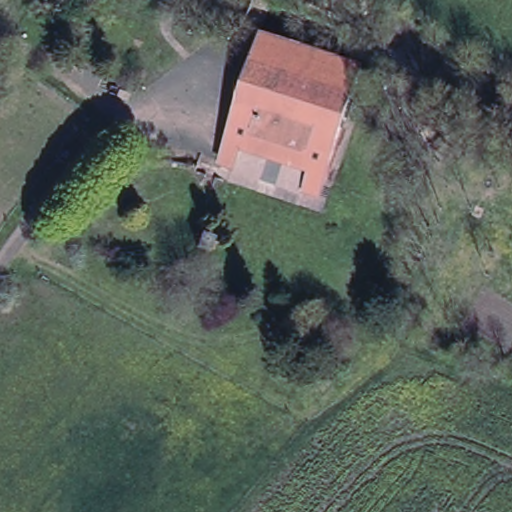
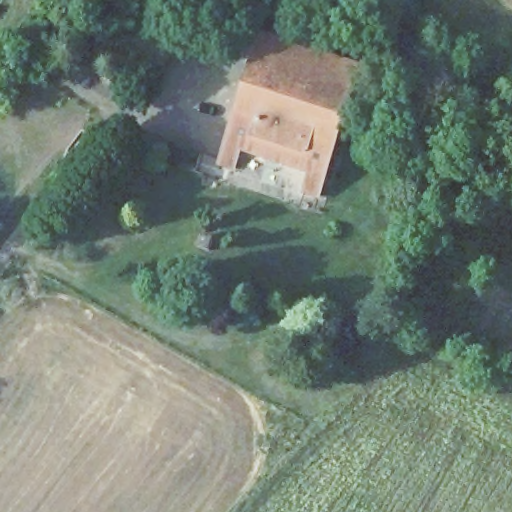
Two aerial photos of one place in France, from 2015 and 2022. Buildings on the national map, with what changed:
unchanged [(362,67),(353,91),(318,195),(220,163),(262,35),(362,67)]

